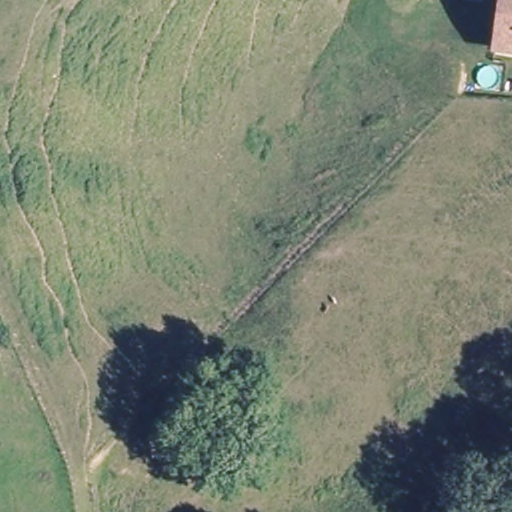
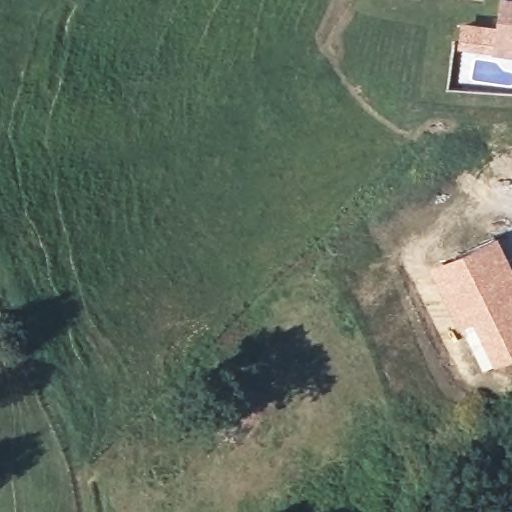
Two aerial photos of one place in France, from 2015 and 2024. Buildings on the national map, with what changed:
unchanged [(506,1),(512,2),(512,53),(499,51),(506,1)]
new [(512,264),(512,356),(482,371),(429,267),(497,234),(512,264)]

